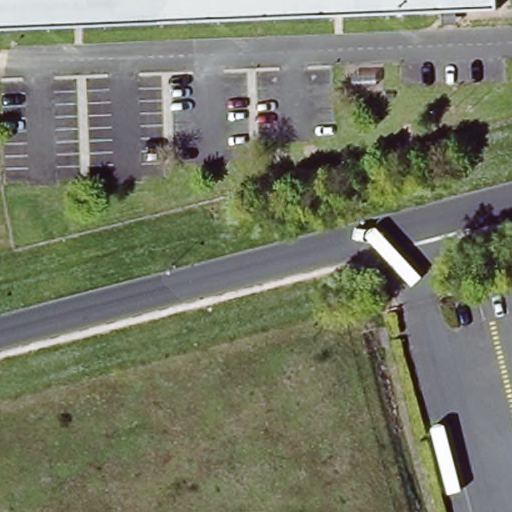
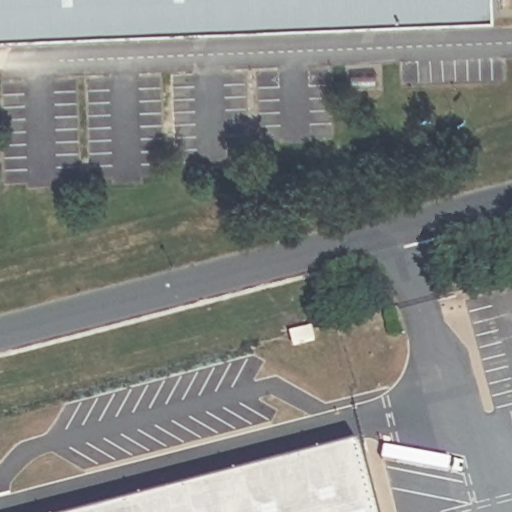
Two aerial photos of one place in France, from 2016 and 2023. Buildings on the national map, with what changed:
unchanged [(0,30),(0,0),(504,0),(504,10),(0,30)]
new [(363,448),(379,512),(119,512),(363,448)]

